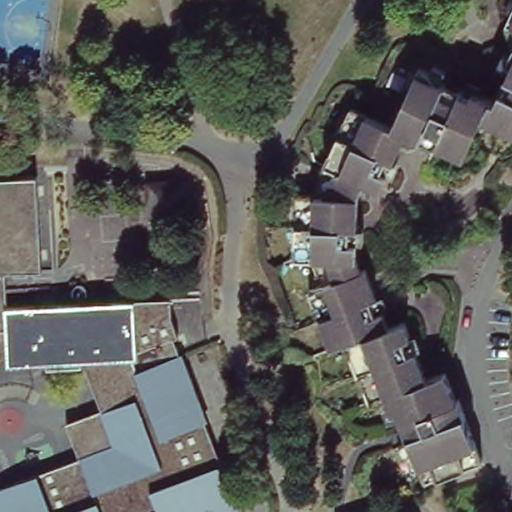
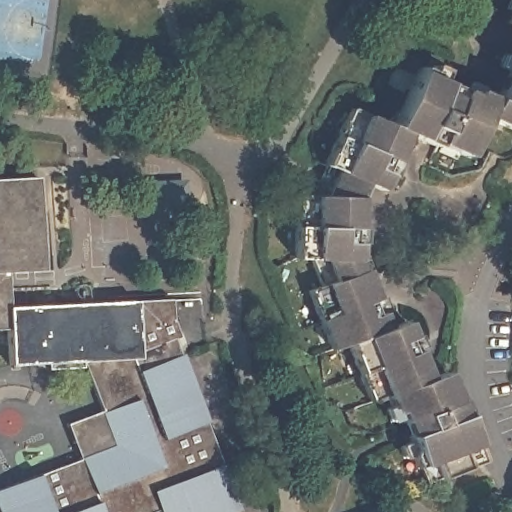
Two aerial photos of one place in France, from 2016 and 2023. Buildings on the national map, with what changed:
unchanged [(506,7),(509,0),(512,0),(512,10),(506,7)]
unchanged [(506,22),(512,10),(512,25),(506,22)]
unchanged [(389,421),(385,410),(391,407),(386,394),(369,400),(347,343),(331,349),(309,291),(322,286),(312,259),(295,259),(296,196),(311,196),(325,165),(350,109),(393,127),(419,67),(431,72),(434,65),(446,71),(441,82),(446,84),(460,90),(465,92),(467,88),(469,81),(481,86),(478,93),(495,100),(500,90),(506,76),(508,71),(497,66),(502,55),(509,57),(512,50),(512,130),(482,116),(465,156),(437,144),(436,146),(406,134),(393,162),(386,159),(383,165),(380,172),(387,175),(380,190),(364,182),(358,197),(357,230),(349,229),(349,236),(349,244),(357,244),(357,260),(361,271),(366,269),(377,299),(370,301),(373,307),(376,315),(383,312),(388,327),(405,320),(410,335),(403,338),(406,346),(408,352),(415,349),(427,378),(445,371),(456,400),(458,400),(482,460),(425,482),(419,465),(414,467),(410,455),(403,458),(399,445),(410,440),(408,435),(402,422),(400,417),(396,418),(389,421)]
unchanged [(0,508),(0,489),(80,458),(66,423),(101,410),(82,361),(9,365),(7,328),(0,329),(0,179),(37,176),(43,270),(6,272),(8,307),(170,300),(172,318),(178,337),(184,351),(216,340),(242,408),(210,420),(238,507),(226,512),(159,512),(158,510),(152,512),(2,512),(0,508)]
unchanged [(181,185),(183,215),(152,216),(151,185),(181,185)]

